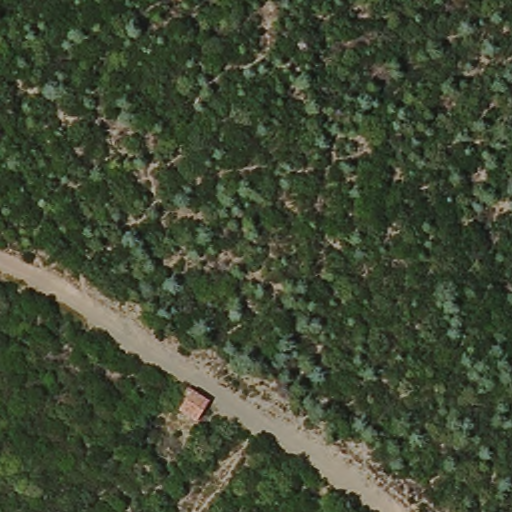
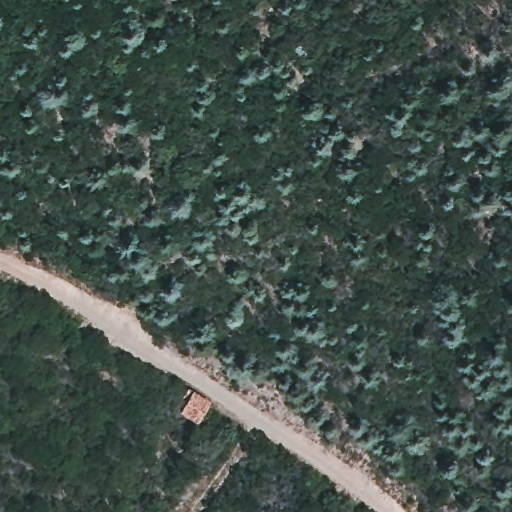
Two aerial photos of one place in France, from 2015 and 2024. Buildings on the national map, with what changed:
unchanged [(201,398),(190,421),(168,410),(178,386),(201,398)]

